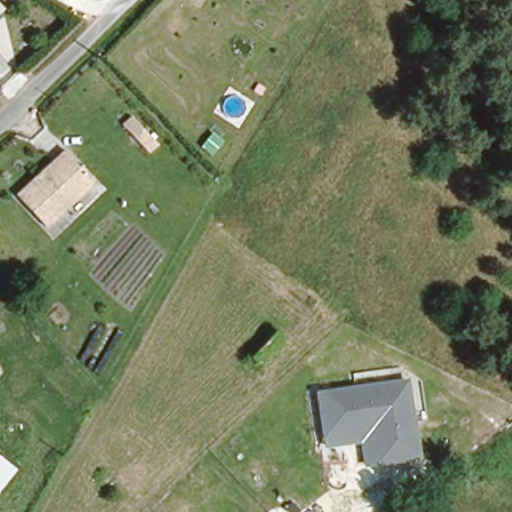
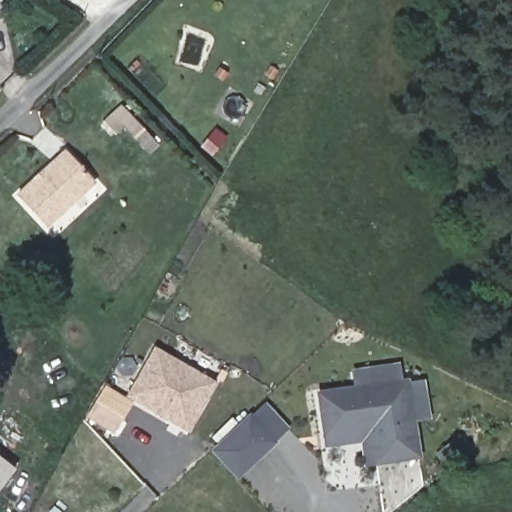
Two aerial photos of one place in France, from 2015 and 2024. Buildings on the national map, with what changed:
unchanged [(43,225),(14,194),(62,148),(91,180),(43,225)]
demolished [(268,375),(247,358),(280,326),(297,347),(268,375)]
new [(85,418),(105,385),(125,397),(155,346),(217,382),(188,433),(133,402),(115,435),(85,418)]
unchanged [(327,430),(322,387),(411,378),(419,450),(376,454),(375,442),(329,447),(327,430)]
new [(235,480),(209,450),(250,413),(276,442),(235,480)]
new [(0,493),(0,461),(16,475),(0,493)]

